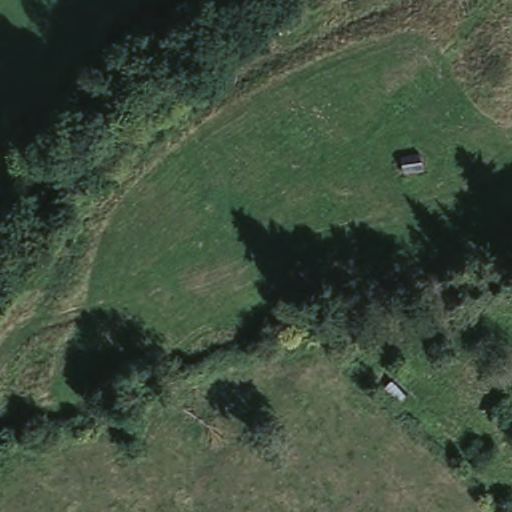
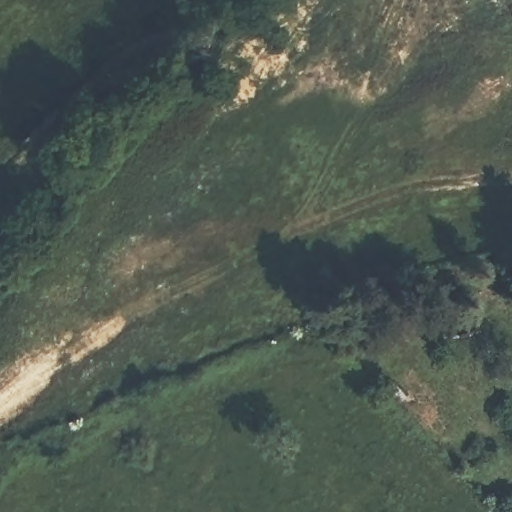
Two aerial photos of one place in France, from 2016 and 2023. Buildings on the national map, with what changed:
unchanged [(420,155),(423,170),(404,174),(401,158),(420,155)]

